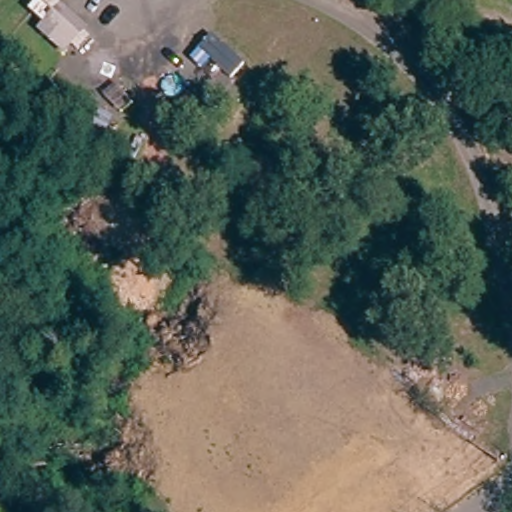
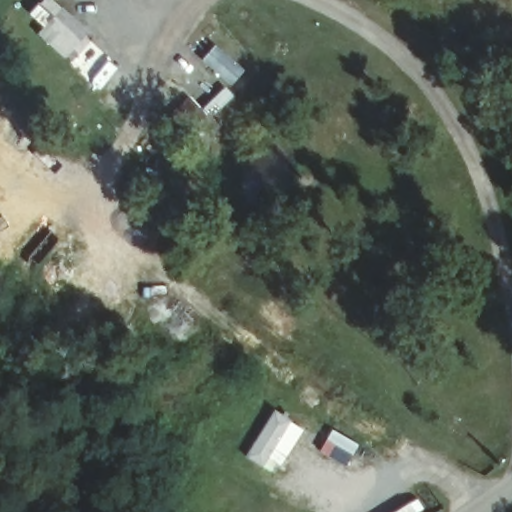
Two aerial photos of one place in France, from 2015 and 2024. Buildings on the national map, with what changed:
unchanged [(35,33),(56,9),(81,31),(61,56),(35,33)]
new [(286,457),(273,450),(263,466),(247,456),(273,413),(302,431),(286,457)]

